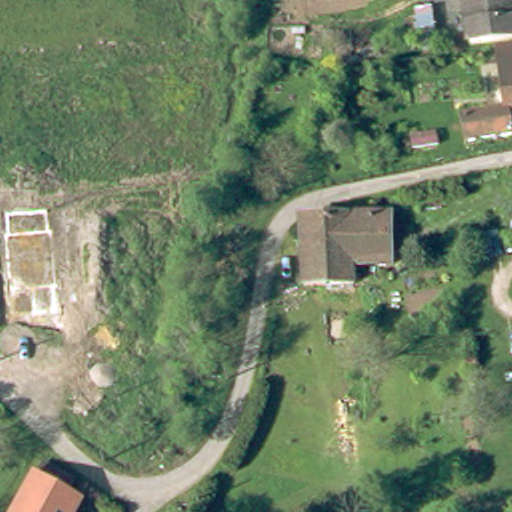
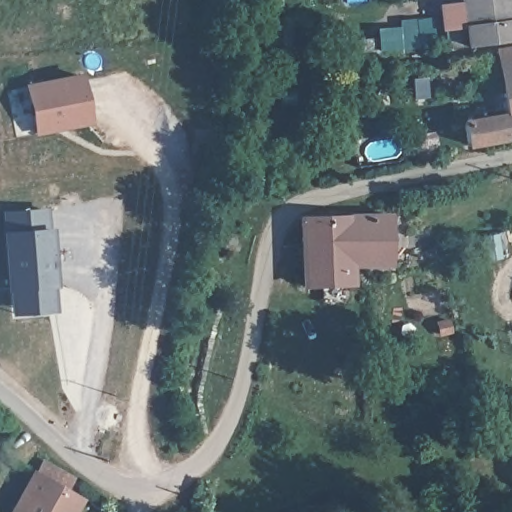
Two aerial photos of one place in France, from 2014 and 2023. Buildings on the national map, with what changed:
unchanged [(477,46),(472,0),(512,0),(512,41),(477,46)]
unchanged [(504,51),(512,50),(512,100),(504,51)]
new [(83,70),(94,125),(34,137),(25,84),(83,70)]
unchanged [(472,121),(512,115),(512,139),(476,145),(472,121)]
unchanged [(432,132),(434,144),(409,150),(407,137),(432,132)]
new [(52,226),(59,310),(9,315),(2,231),(1,210),(50,206),(52,226)]
unchanged [(397,217),(399,265),(360,266),(360,285),(310,286),(309,220),(397,217)]
unchanged [(490,239),(495,262),(484,265),(478,242),(490,239)]
unchanged [(65,482),(75,488),(71,494),(87,503),(82,512),(21,512),(47,463),(69,476),(65,482)]

